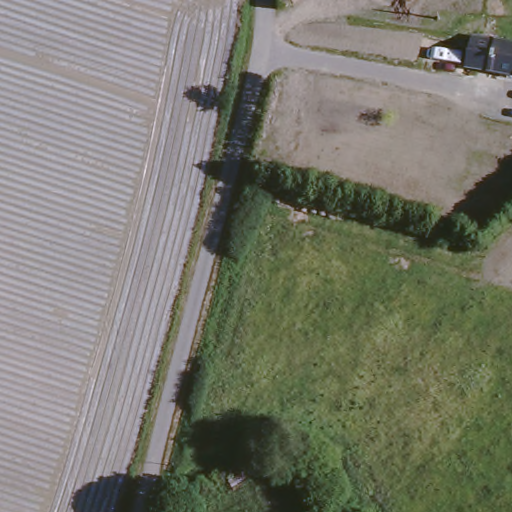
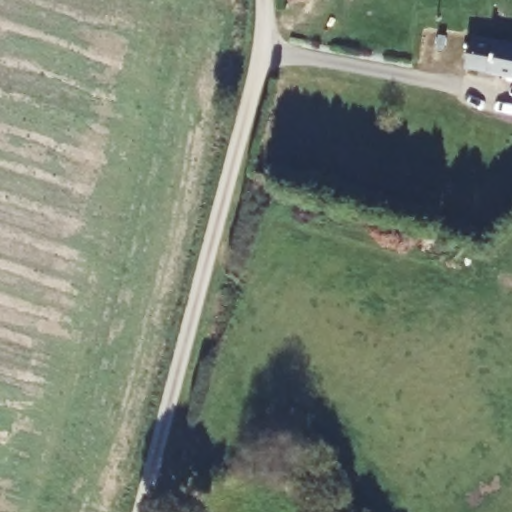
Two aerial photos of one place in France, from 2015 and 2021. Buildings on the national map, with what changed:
unchanged [(512,91),(451,72),(466,25),(512,38),(512,91)]

